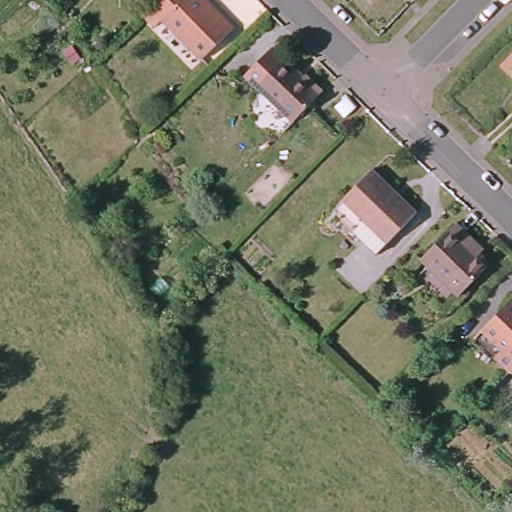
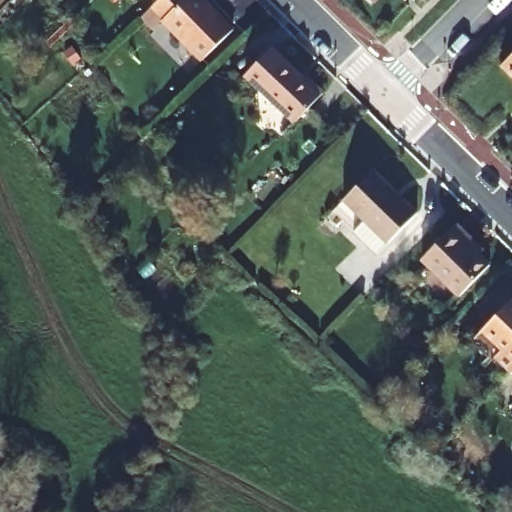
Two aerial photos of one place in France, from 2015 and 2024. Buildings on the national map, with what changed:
unchanged [(164,19),(155,27),(142,15),(151,6),(157,0),(206,0),(234,27),(203,59),(164,19)]
unchanged [(512,34),(512,74),(493,55),(512,34)]
unchanged [(258,86),(284,58),(304,75),(306,74),(323,90),(294,120),(258,86)]
unchanged [(413,207),(383,239),(382,238),(372,248),(349,225),(360,214),(339,194),(368,163),(413,207)]
unchanged [(460,295),(422,258),(457,222),(472,236),(473,235),(485,248),(480,253),(491,263),(460,295)]
unchanged [(485,327),(499,313),(512,299),(512,370),(477,335),(485,327)]

